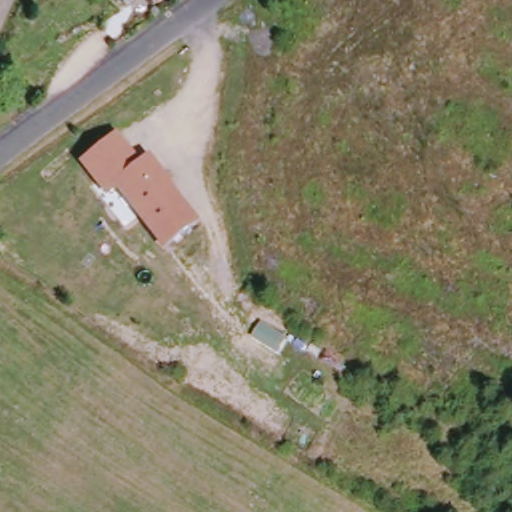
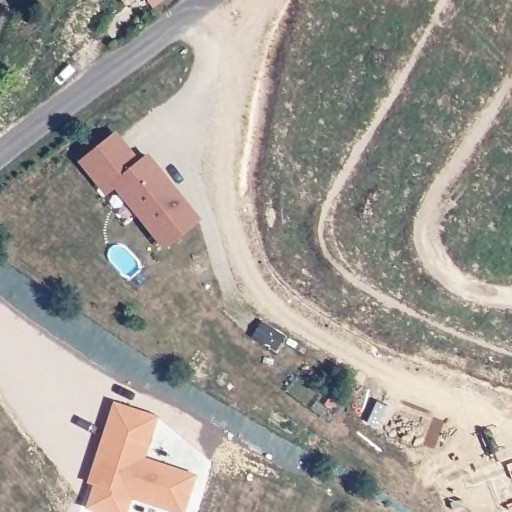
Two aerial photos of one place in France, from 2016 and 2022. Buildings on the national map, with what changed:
unchanged [(115,0),(112,3),(110,0),(128,0),(120,6),(115,0)]
unchanged [(142,0),(153,0),(147,5),(142,0)]
unchanged [(135,162),(147,154),(199,222),(160,248),(112,190),(102,196),(75,162),(114,135),(135,162)]
new [(157,416),(146,458),(197,476),(186,512),(172,512),(131,500),(128,512),(94,512),(87,510),(93,484),(87,482),(113,403),(157,416)]

